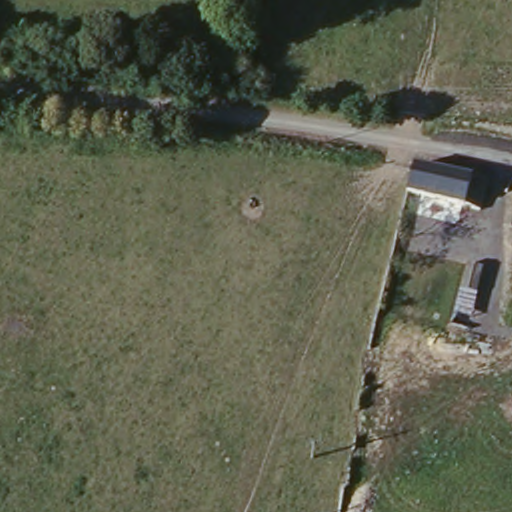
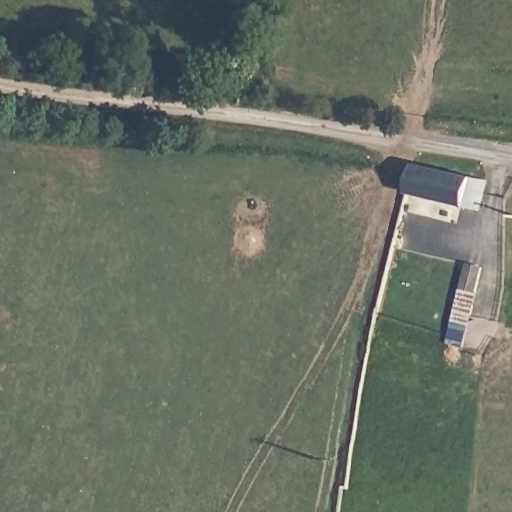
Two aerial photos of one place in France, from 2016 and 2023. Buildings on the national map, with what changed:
unchanged [(481,211),(451,203),(407,194),(413,165),(487,183),(481,211)]
unchanged [(485,273),(469,329),(454,324),(470,268),(485,273)]

